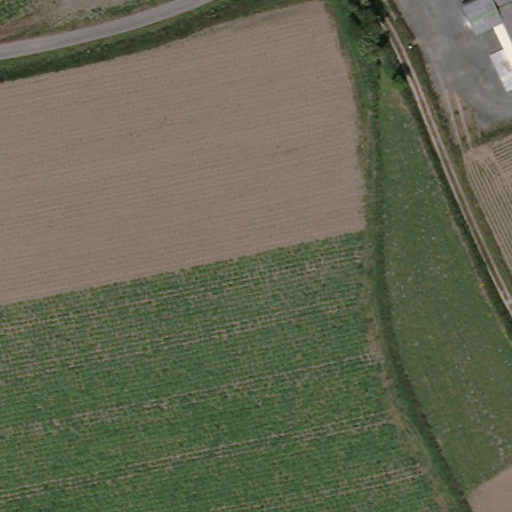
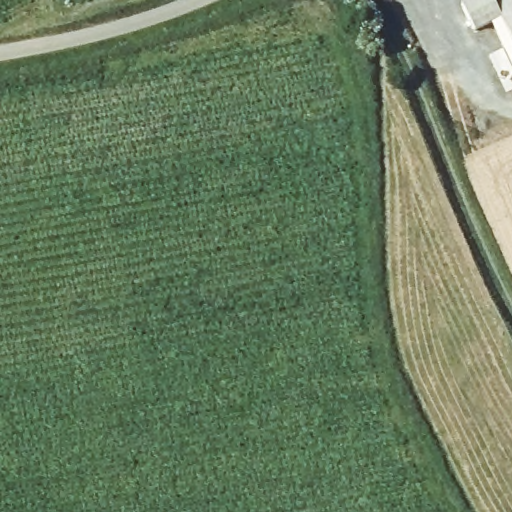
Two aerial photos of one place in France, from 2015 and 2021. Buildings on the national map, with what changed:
unchanged [(495,28),(492,21),(474,29),(461,2),(466,0),(512,0),(512,63),(495,28)]

